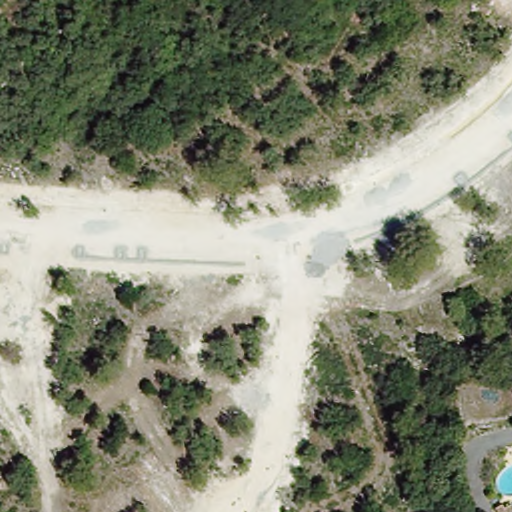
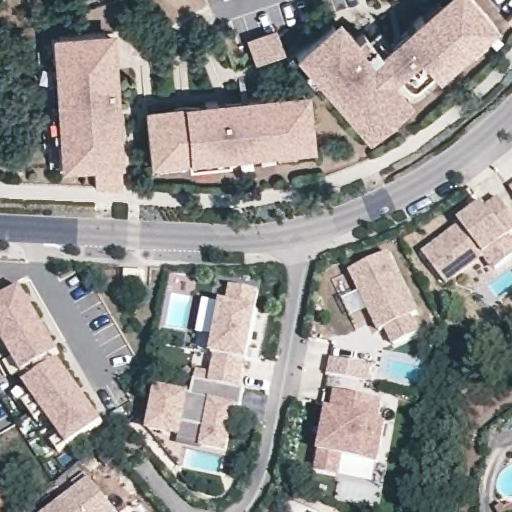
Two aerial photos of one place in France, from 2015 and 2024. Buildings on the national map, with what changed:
new [(441,0),(475,0),(493,19),(464,45),(431,9),(441,0)]
new [(431,9),(464,45),(435,71),(432,67),(402,35),(431,9)]
new [(432,67),(415,82),(412,81),(397,65),(388,74),(386,72),(355,100),(331,74),(326,79),(300,50),(337,17),(356,38),(361,33),(368,40),(381,54),(402,35),(432,67)]
new [(120,30),(123,64),(60,68),(58,38),(58,33),(120,30)]
new [(269,33),(279,61),(248,72),(238,44),(269,33)]
new [(58,38),(60,68),(63,101),(65,135),(67,166),(57,167),(48,39),(58,38)]
new [(123,64),(124,88),(133,88),(133,97),(63,101),(60,68),(123,64)]
new [(386,72),(388,74),(407,95),(375,123),(355,100),(386,72)]
new [(191,162),(183,114),(229,107),(266,101),(304,96),(311,144),(274,150),(255,153),(236,155),(230,156),(191,162)]
new [(133,97),(133,105),(125,106),(126,130),(65,135),(63,101),(133,97)]
new [(183,114),(191,162),(153,168),(146,119),(183,114)]
new [(126,130),(129,164),(126,164),(128,188),(96,186),(94,167),(67,168),(67,166),(65,135),(126,130)]
unchanged [(465,228),(479,218),(476,214),(484,208),(487,212),(489,210),(492,214),(504,205),(512,216),(512,270),(502,277),(490,261),(452,290),(429,260),(468,231),(465,228)]
new [(395,256),(419,317),(414,319),(421,336),(395,347),(388,330),(380,334),(356,271),(395,256)]
new [(3,284),(0,285),(0,260),(3,260),(3,284)]
new [(30,308),(0,326),(0,298),(18,287),(30,308)]
new [(214,305),(223,307),(227,287),(256,293),(243,364),(250,365),(246,389),(214,383),(218,363),(203,361),(214,305)]
new [(39,322),(45,318),(48,325),(6,350),(0,339),(0,326),(30,308),(39,322)]
new [(53,427),(66,446),(61,450),(16,387),(20,385),(0,353),(0,339),(6,350),(48,325),(53,332),(47,336),(56,351),(48,356),(55,367),(58,364),(72,383),(81,396),(86,392),(91,399),(53,427)]
new [(330,356),(372,364),(369,381),(326,373),(330,356)]
new [(156,386),(196,393),(198,381),(214,383),(246,389),(244,403),(236,401),(228,448),(236,450),(231,477),(188,469),(164,433),(148,430),(156,386)]
unchanged [(329,417),(332,418),(336,397),(389,407),(378,468),(343,462),(339,483),(316,479),(329,417)]
new [(91,399),(96,406),(91,410),(100,422),(66,446),(53,427),(91,399)]
demolished [(512,469),(512,474),(511,469),(512,469)]
new [(120,512),(49,512),(96,478),(120,512)]

